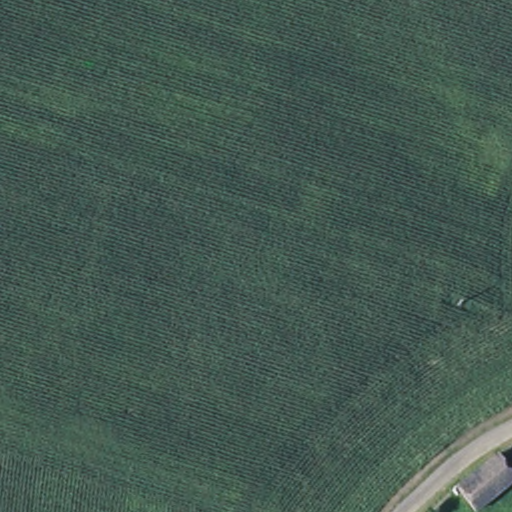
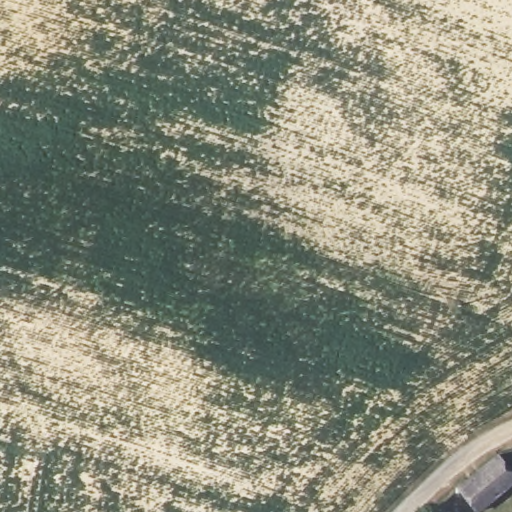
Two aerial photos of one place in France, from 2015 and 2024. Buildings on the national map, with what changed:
unchanged [(512,476),(512,485),(474,512),(472,512),(455,488),(498,456),(512,476)]

